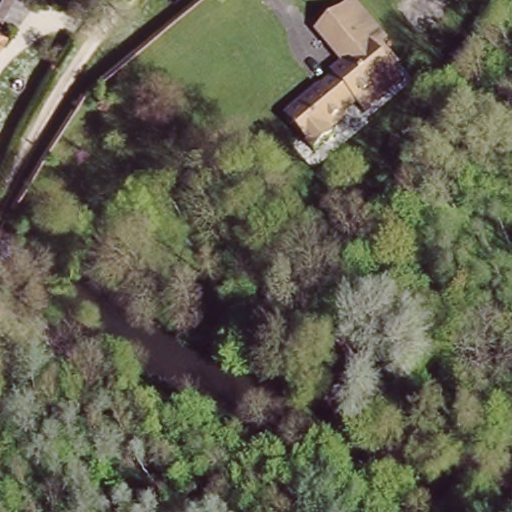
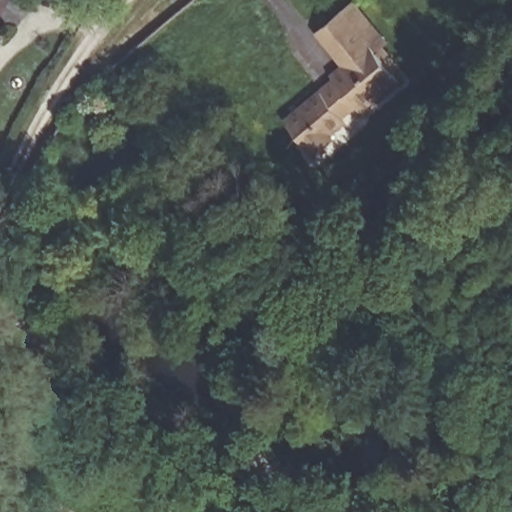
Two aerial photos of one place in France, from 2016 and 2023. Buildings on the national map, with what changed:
unchanged [(0,0),(14,0),(0,27),(0,0)]
unchanged [(25,0),(46,0),(42,9),(25,0)]
unchanged [(382,42),(392,53),(385,60),(392,69),(342,111),(346,115),(328,130),(334,137),(315,154),(285,119),(334,77),(330,74),(343,63),(316,31),(341,9),(375,48),(382,42)]

